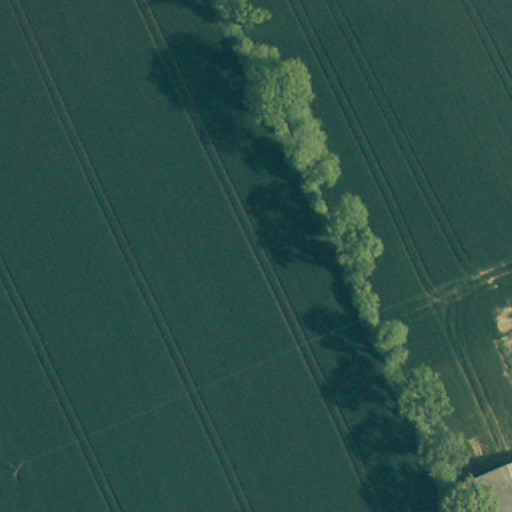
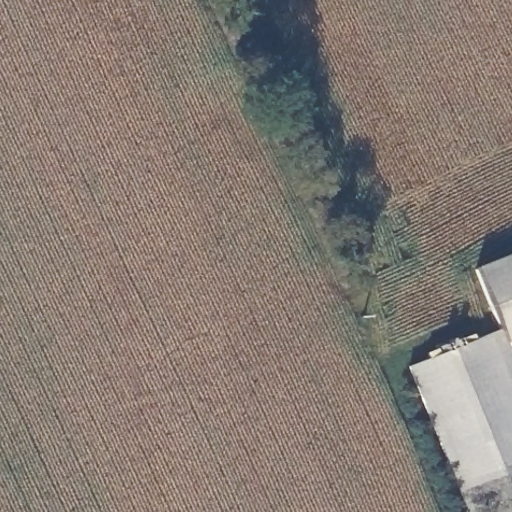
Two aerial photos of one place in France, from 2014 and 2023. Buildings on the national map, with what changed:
new [(512,339),(504,343),(512,365),(512,467),(453,490),(405,367),(497,329),(472,267),(512,250),(512,339)]
unchanged [(512,467),(512,512),(463,512),(453,490),(512,467)]

